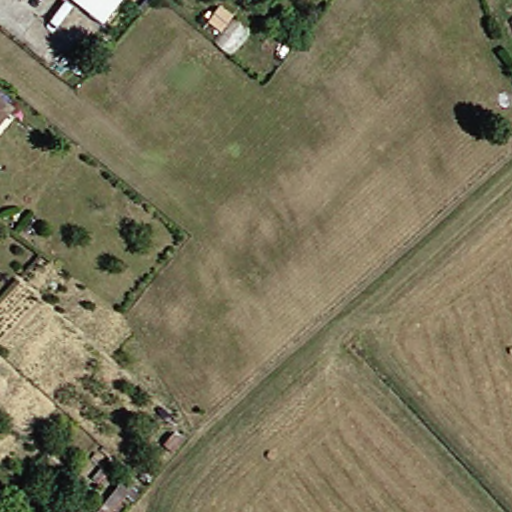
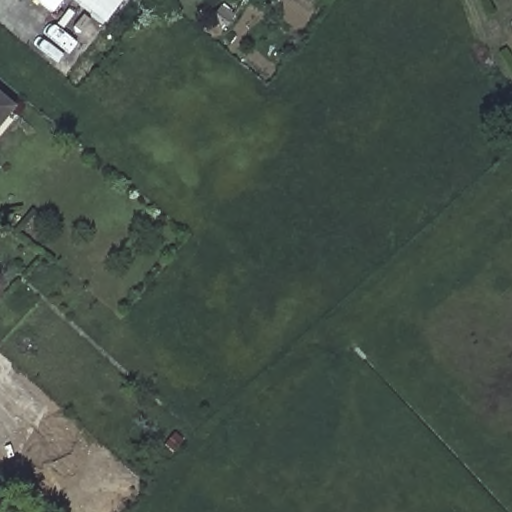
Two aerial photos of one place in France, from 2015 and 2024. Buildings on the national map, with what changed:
unchanged [(5,111),(0,116),(0,107),(5,111)]
unchanged [(108,512),(95,512),(120,479),(128,486),(108,512)]

